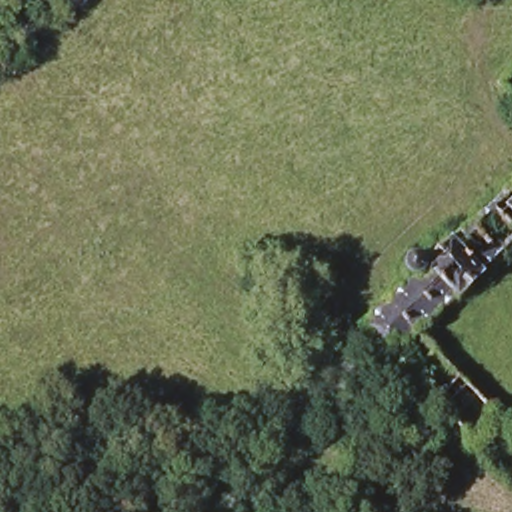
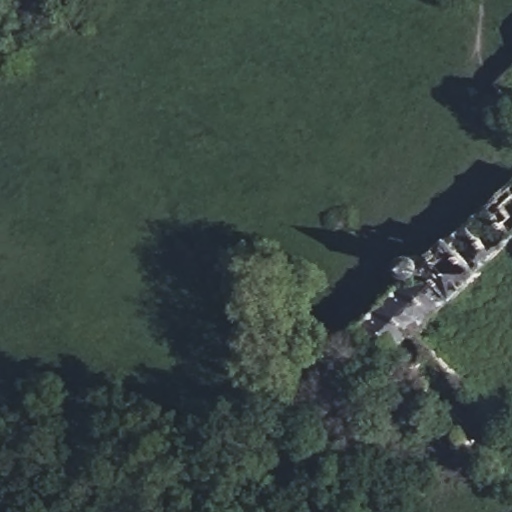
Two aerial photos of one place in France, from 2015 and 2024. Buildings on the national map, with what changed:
unchanged [(347,404),(336,419),(317,402),(329,390),(347,404)]
unchanged [(347,471),(325,449),(344,428),(367,450),(347,471)]

